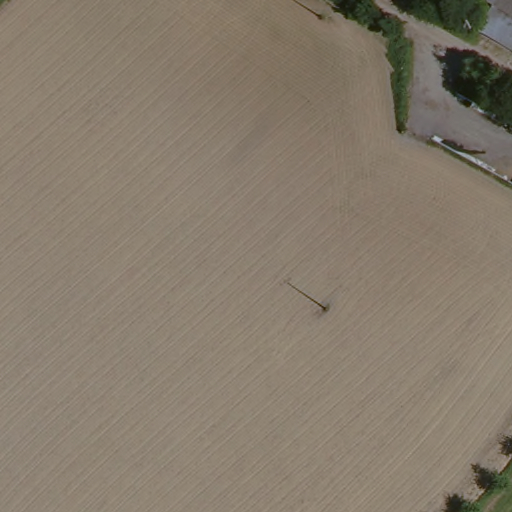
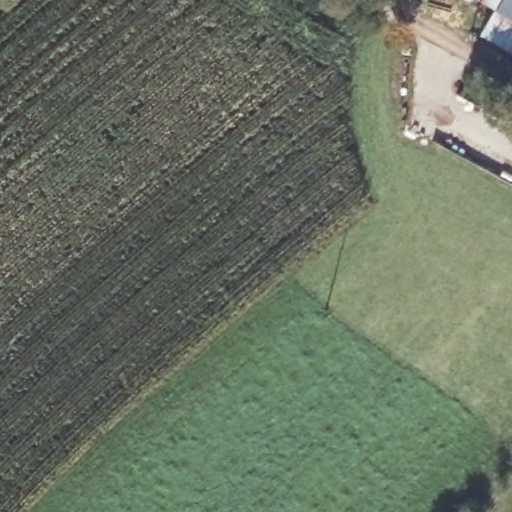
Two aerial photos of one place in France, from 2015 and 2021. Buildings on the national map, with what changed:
unchanged [(501,12),(482,0),(512,0),(512,50),(487,36),(501,12)]

